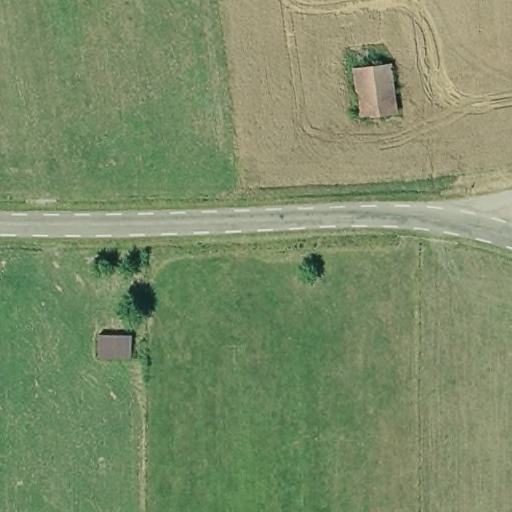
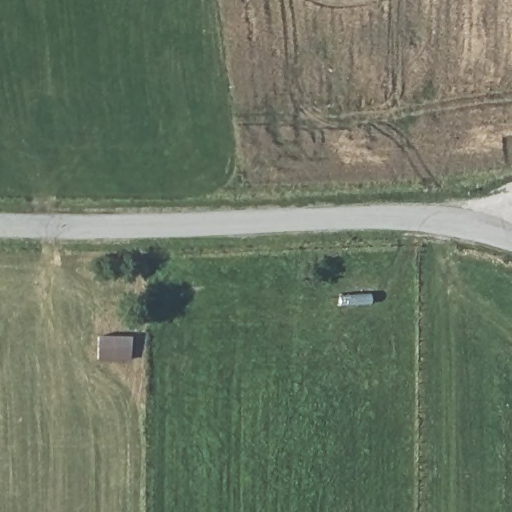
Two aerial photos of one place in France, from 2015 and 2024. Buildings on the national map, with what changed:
demolished [(356,122),(350,66),(385,63),(395,115),(356,122)]
unchanged [(97,361),(97,335),(131,337),(128,361),(97,361)]

